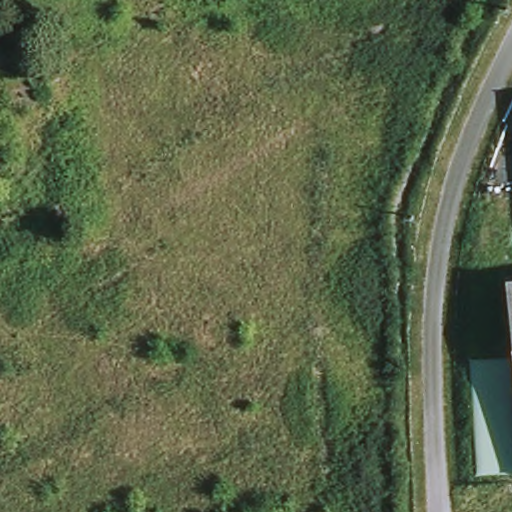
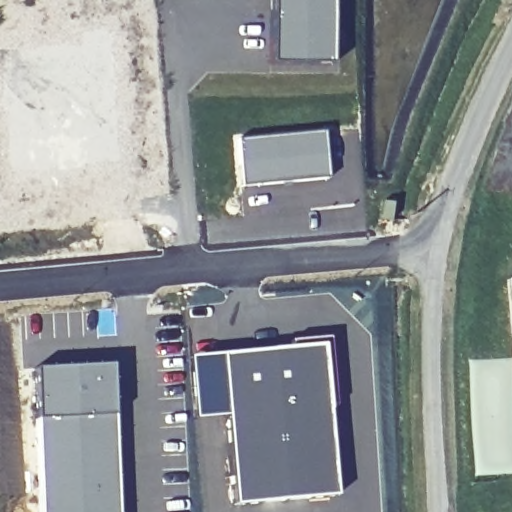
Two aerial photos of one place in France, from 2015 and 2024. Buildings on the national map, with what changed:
new [(332,0),(329,65),(271,62),(272,0),(332,0)]
demolished [(0,37),(0,22),(5,36),(0,37)]
new [(240,141),(324,132),(329,179),(244,186),(240,141)]
new [(512,340),(506,280),(512,279),(512,340)]
new [(288,344),(288,340),(327,336),(336,496),(234,505),(224,417),(192,420),(186,355),(288,344)]
new [(39,368),(112,365),(119,512),(45,512),(39,368)]

